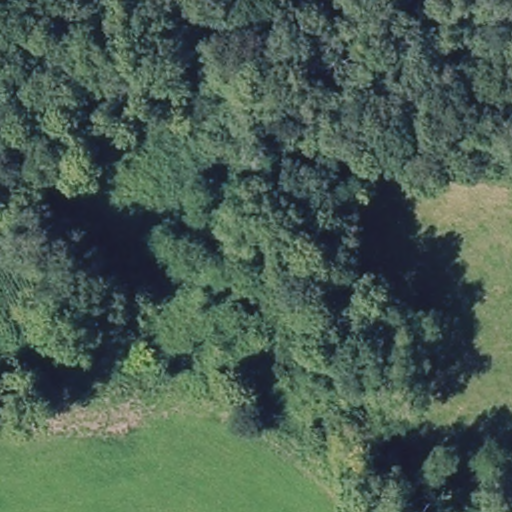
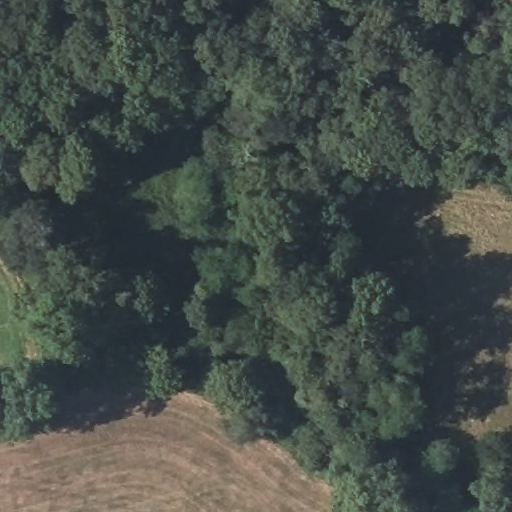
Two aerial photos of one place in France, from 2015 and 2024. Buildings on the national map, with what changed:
unchanged [(123,329),(99,317),(101,312),(109,296),(129,258),(155,273),(132,312),(127,322),(123,329)]

